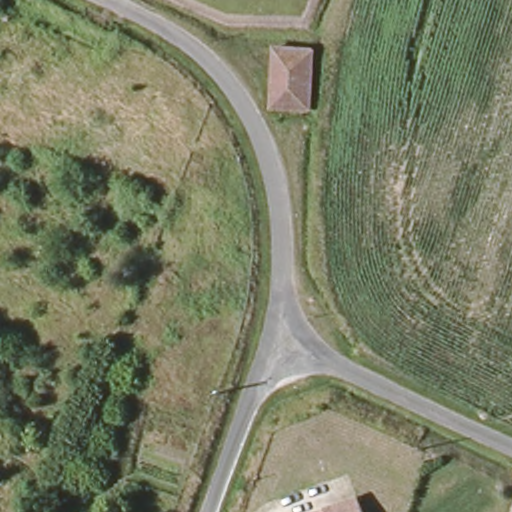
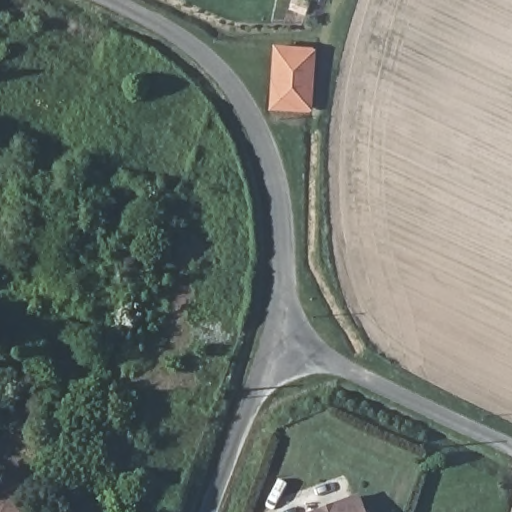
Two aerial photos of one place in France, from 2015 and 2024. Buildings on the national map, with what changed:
unchanged [(316,57),(311,114),(273,111),(278,54),(316,57)]
unchanged [(360,495),(368,512),(317,512),(360,495)]

